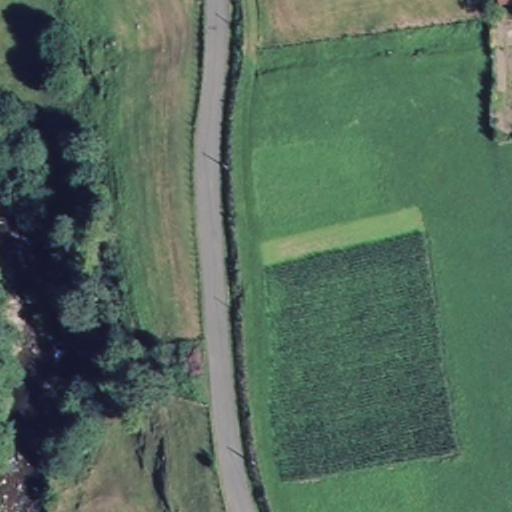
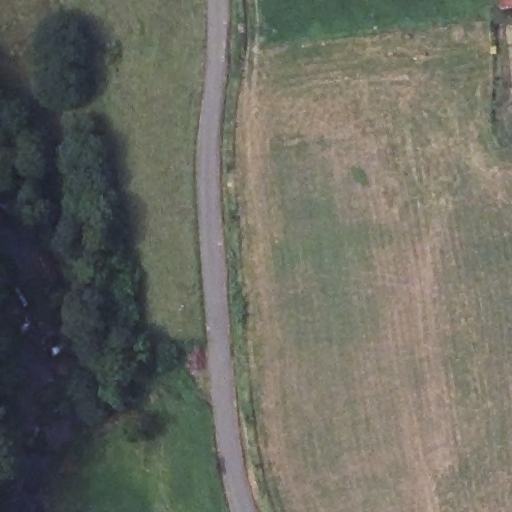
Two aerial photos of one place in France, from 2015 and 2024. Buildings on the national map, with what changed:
unchanged [(497,8),(496,0),(512,0),(512,7),(497,8)]

